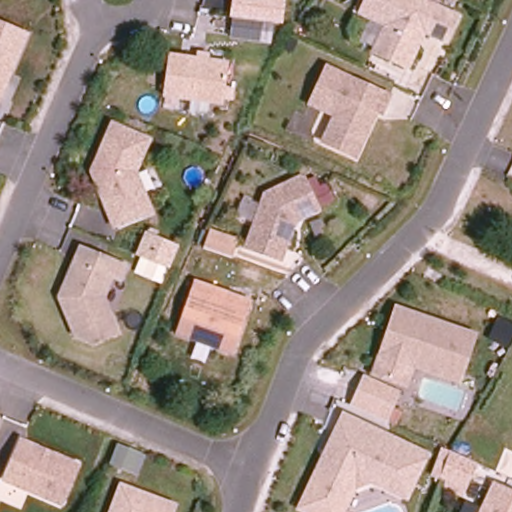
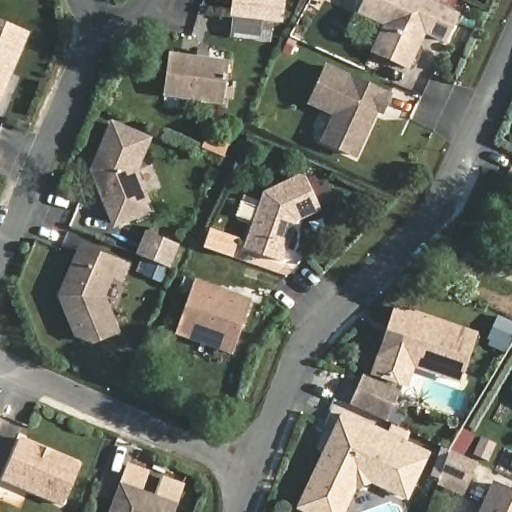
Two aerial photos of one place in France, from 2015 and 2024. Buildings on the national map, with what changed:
unchanged [(273,22),(270,44),(228,39),(232,0),(285,0),(282,24),(273,22)]
unchanged [(427,36),(411,69),(374,52),(385,26),(361,15),(367,0),(429,0),(461,14),(449,46),(427,36)]
unchanged [(224,17),(211,17),(211,10),(224,10),(224,17)]
unchanged [(0,24),(29,36),(0,97),(0,24)]
unchanged [(170,56),(230,65),(224,105),(164,96),(170,56)]
unchanged [(357,158),(324,143),(337,116),(311,105),(327,68),(392,95),(384,112),(379,110),(371,126),(366,138),(357,158)]
unchanged [(136,171),(151,212),(117,227),(111,214),(108,214),(92,175),(114,127),(149,140),(136,171)]
unchanged [(325,205),(298,220),(282,260),(247,245),(267,191),(307,170),(325,205)]
unchanged [(170,268),(135,255),(145,231),(179,243),(170,268)]
unchanged [(120,280),(126,283),(115,311),(108,308),(119,333),(94,344),(77,337),(59,300),(74,261),(79,249),(90,252),(126,266),(120,280)]
unchanged [(237,352),(180,334),(196,282),(254,298),(237,352)]
unchanged [(463,383),(416,368),(409,387),(372,375),(394,303),(479,331),(463,383)]
unchanged [(388,422),(350,405),(364,375),(401,391),(388,422)]
unchanged [(408,501),(369,485),(355,490),(346,512),(303,512),(295,508),(343,410),(431,453),(408,501)]
unchanged [(68,502),(6,481),(23,439),(82,461),(68,502)]
unchanged [(481,463),(464,497),(443,488),(447,480),(438,476),(449,450),(481,463)]
unchanged [(170,512),(111,512),(120,483),(175,497),(173,503),(170,512)]
unchanged [(496,487),(512,494),(512,512),(485,512),(496,487)]

